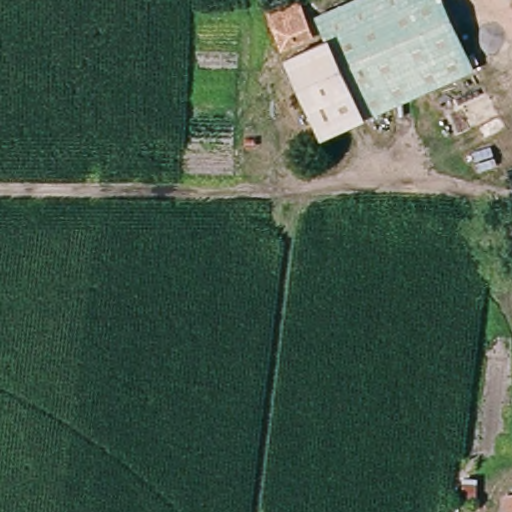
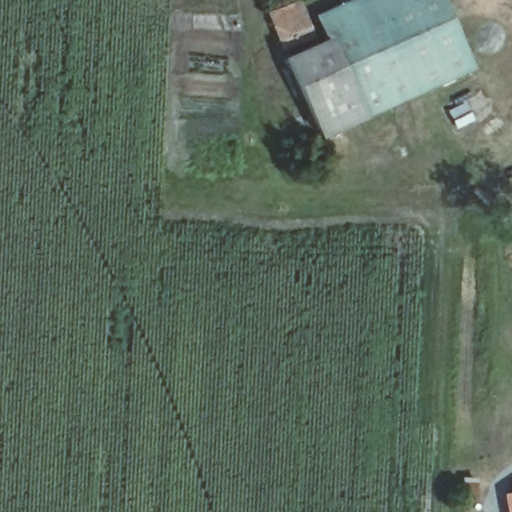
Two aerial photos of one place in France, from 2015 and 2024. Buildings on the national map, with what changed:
unchanged [(277,48),(264,9),(284,0),(300,0),(311,37),(277,48)]
unchanged [(278,55),(323,38),(314,13),(346,0),(443,0),(476,65),(425,92),(318,137),(278,55)]
unchanged [(512,494),(512,505),(510,494),(512,494)]

